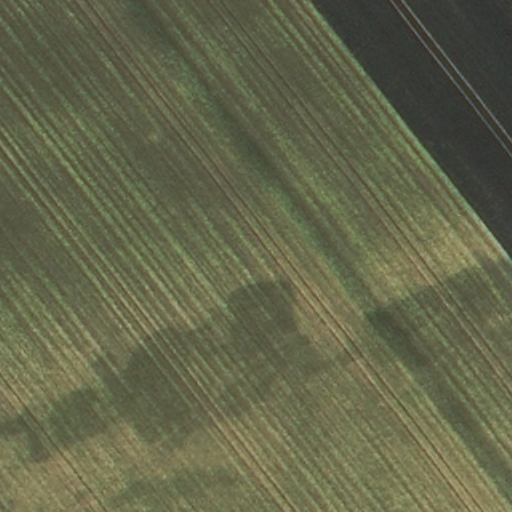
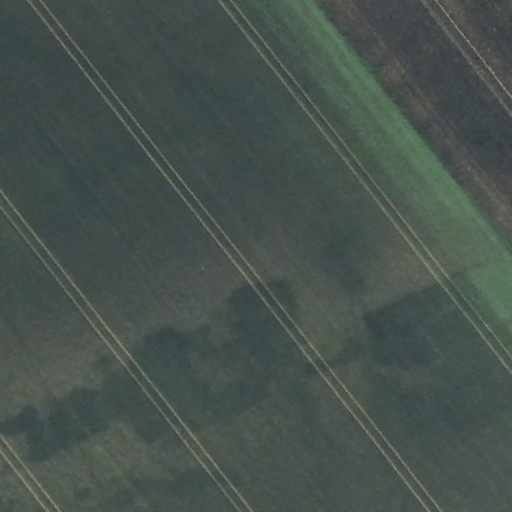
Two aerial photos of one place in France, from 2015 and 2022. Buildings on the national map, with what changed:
[]

